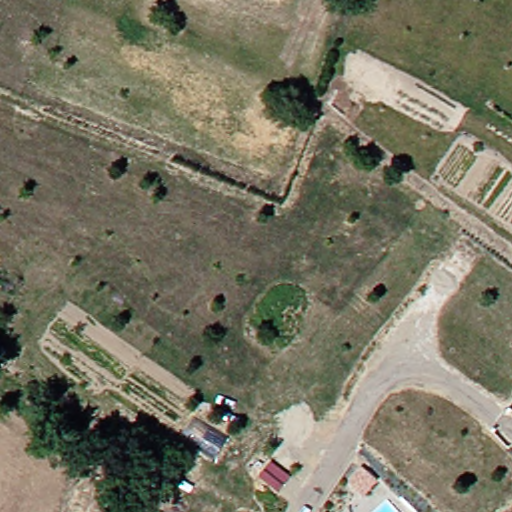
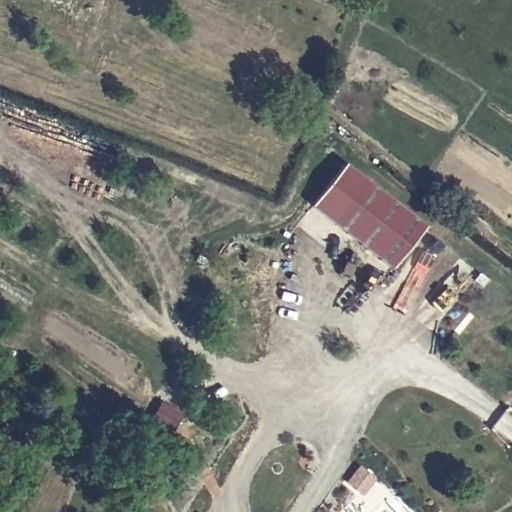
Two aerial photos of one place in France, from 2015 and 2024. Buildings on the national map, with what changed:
new [(417,229),(391,265),(307,204),(334,168),(417,229)]

